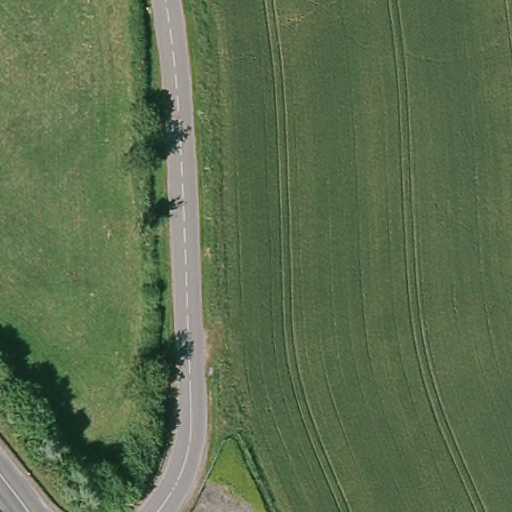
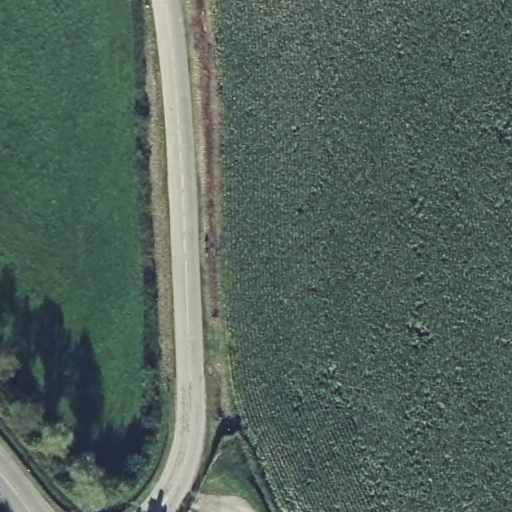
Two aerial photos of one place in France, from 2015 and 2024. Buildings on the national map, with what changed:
[]

